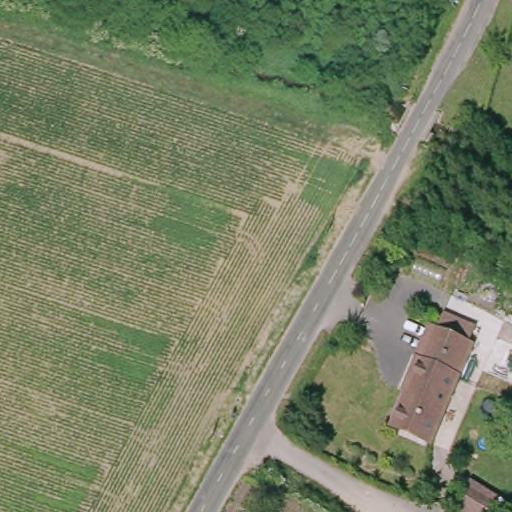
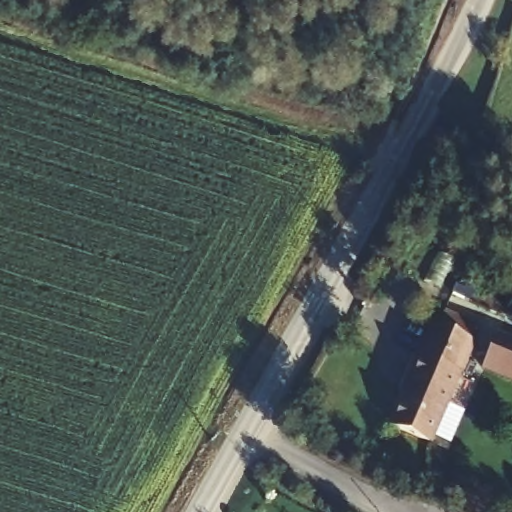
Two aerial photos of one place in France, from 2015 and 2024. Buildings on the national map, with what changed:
unchanged [(410,376),(438,325),(478,349),(427,443),(391,423),(416,380),(410,376)]
new [(512,340),(512,385),(480,373),(496,334),(512,340)]
unchanged [(502,500),(495,512),(457,512),(454,507),(471,480),(502,500)]

